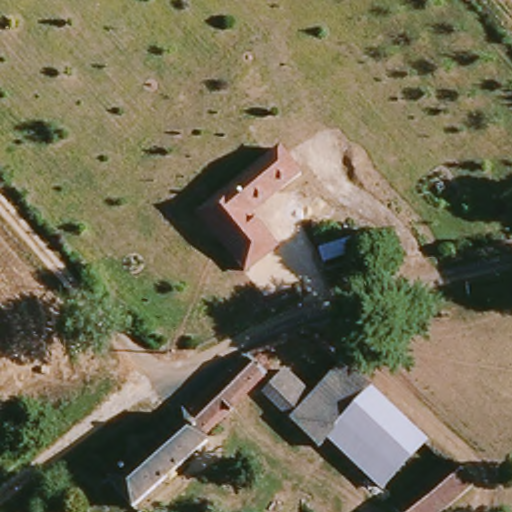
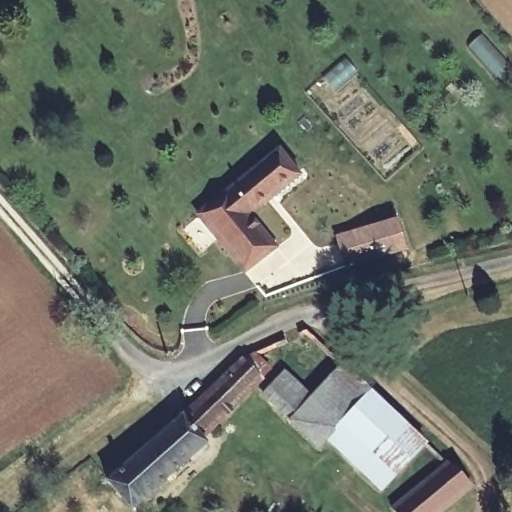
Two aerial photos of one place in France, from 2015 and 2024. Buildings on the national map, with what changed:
unchanged [(242,269),(195,208),(272,151),(295,181),(287,187),(248,214),(272,246),(242,269)]
new [(398,217),(408,250),(345,269),(336,235),(398,217)]
unchanged [(270,375),(200,442),(205,453),(139,512),(129,512),(105,483),(245,349),(270,375)]
unchanged [(339,360),(372,393),(333,427),(320,439),(270,387),(292,366),(313,385),(339,360)]
unchanged [(372,393),(423,443),(384,479),(333,427),(372,393)]
unchanged [(394,512),(392,509),(447,460),(470,484),(440,512),(394,512)]

